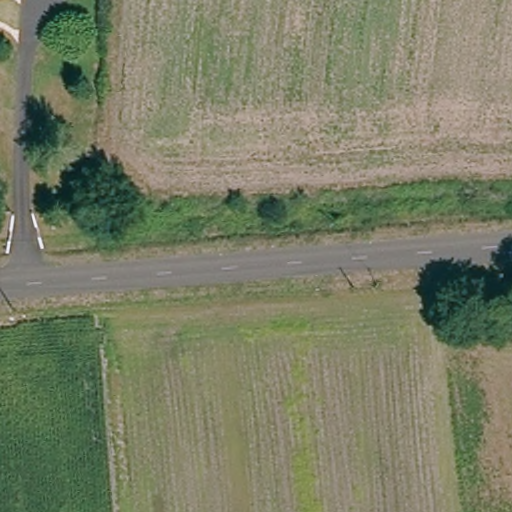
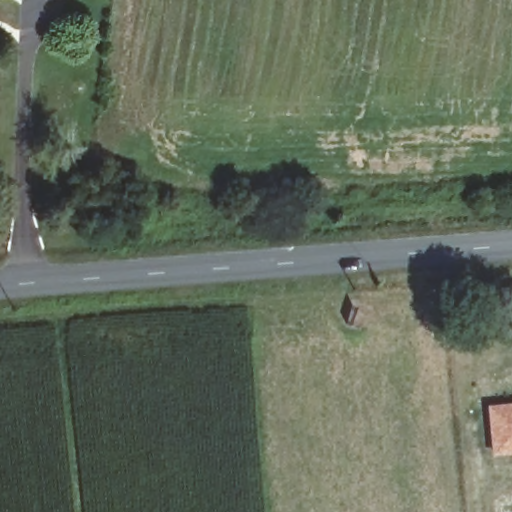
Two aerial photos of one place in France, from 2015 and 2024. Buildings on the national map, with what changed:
new [(512,457),(490,458),(486,405),(512,403),(512,457)]

